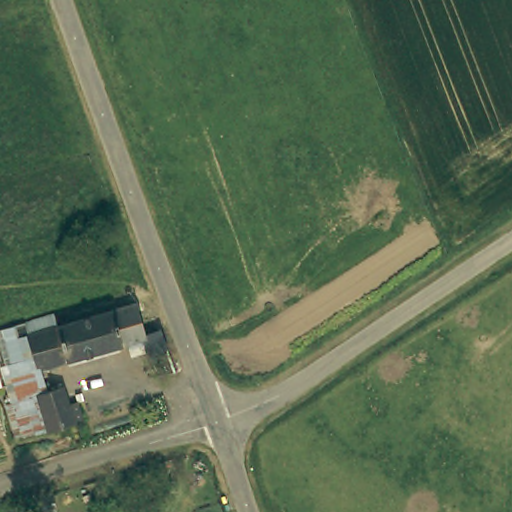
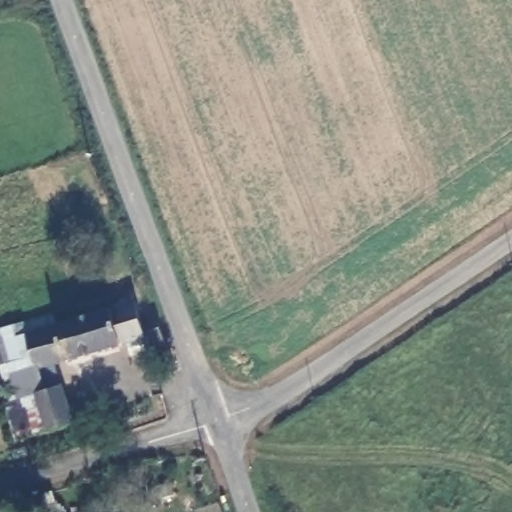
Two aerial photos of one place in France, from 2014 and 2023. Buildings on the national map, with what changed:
unchanged [(167,342),(151,347),(147,334),(37,366),(33,352),(25,355),(17,333),(26,330),(23,321),(52,312),(55,322),(136,298),(144,326),(160,322),(167,342)]
unchanged [(7,392),(4,384),(0,385),(0,328),(15,325),(17,333),(25,355),(33,352),(37,366),(41,365),(46,387),(67,383),(79,421),(39,433),(14,439),(6,410),(2,394),(7,392)]
unchanged [(27,512),(0,512),(0,507),(24,501),(27,512)]

